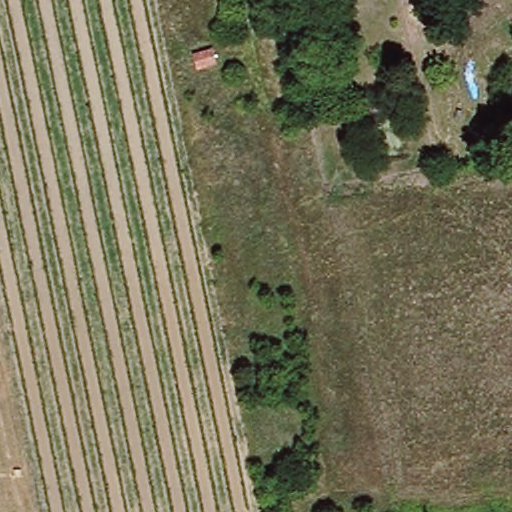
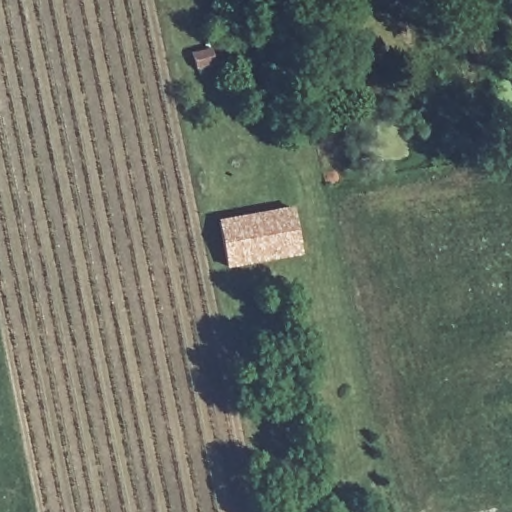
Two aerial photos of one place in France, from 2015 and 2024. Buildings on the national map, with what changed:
new [(302,253),(229,268),(219,224),(293,208),(302,253)]

